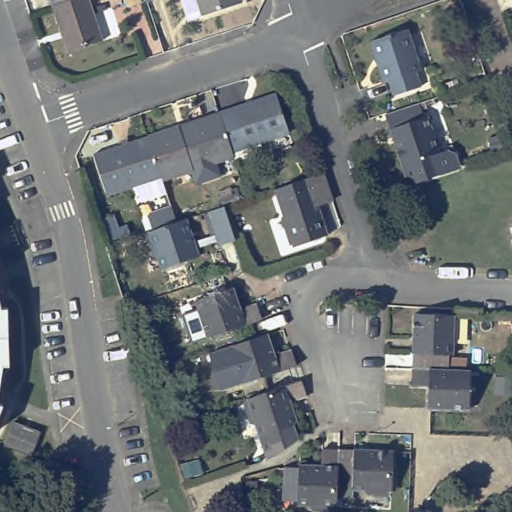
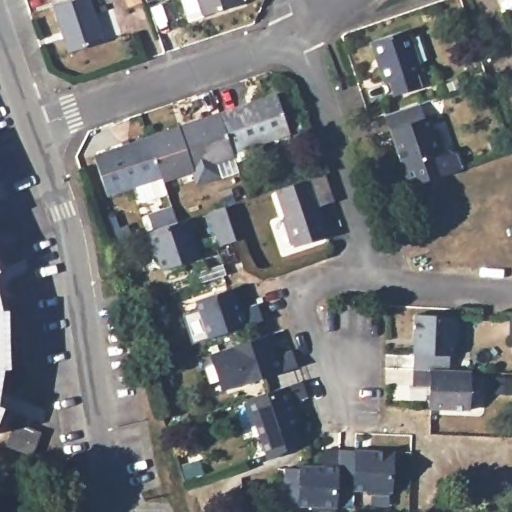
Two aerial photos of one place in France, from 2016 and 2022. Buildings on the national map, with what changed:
unchanged [(49,0),(72,0),(51,7),(49,0)]
unchanged [(87,0),(102,42),(67,54),(51,7),(72,0),(87,0)]
unchanged [(213,18),(213,16),(200,21),(192,0),(249,0),(251,5),(213,18)]
unchanged [(407,27),(421,67),(416,69),(421,83),(393,92),(388,79),(383,80),(369,40),(407,27)]
unchanged [(276,96),(288,134),(232,152),(219,115),(276,96)]
unchanged [(419,100),(423,114),(427,112),(440,150),(448,147),(450,147),(456,152),(460,165),(407,182),(388,125),(390,125),(385,111),(419,100)]
unchanged [(200,121),(219,115),(232,152),(233,156),(215,163),(220,177),(195,185),(190,171),(162,181),(162,179),(148,138),(178,129),(200,121)]
unchanged [(148,138),(162,179),(162,181),(167,194),(167,195),(141,203),(136,187),(108,197),(94,156),(148,138)]
unchanged [(328,175),(337,201),(322,206),(332,236),(297,247),(278,191),(328,175)]
unchanged [(224,203),(235,235),(218,240),(207,208),(224,203)]
unchanged [(157,223),(182,214),(186,229),(196,225),(209,262),(171,275),(158,237),(161,236),(157,223)]
unchanged [(200,301),(239,289),(246,310),(261,305),(266,322),(213,340),(200,301)]
unchanged [(2,310),(7,310),(9,366),(3,366),(0,383),(0,303),(2,310)]
unchanged [(416,355),(418,315),(458,317),(456,356),(451,356),(451,371),(416,370),(416,355)]
unchanged [(297,365),(281,370),(222,390),(209,354),(268,333),(276,355),(292,349),(297,365)]
unchanged [(451,371),(473,372),(471,412),(430,410),(432,387),(415,386),(416,370),(451,371)]
unchanged [(300,387),(300,389),(305,403),(289,408),(296,429),(291,431),(296,445),(274,461),(265,465),(245,405),(300,387)]
unchanged [(3,407),(0,414),(0,406),(3,407)]
unchanged [(14,421),(41,430),(33,454),(5,445),(14,421)]
unchanged [(339,508),(301,507),(301,502),(286,501),(287,467),(302,468),(302,465),(325,467),(326,451),(342,452),(340,486),(339,508)]
unchanged [(342,452),(358,452),(358,451),(397,454),(395,494),(356,492),(356,487),(340,486),(342,452)]

